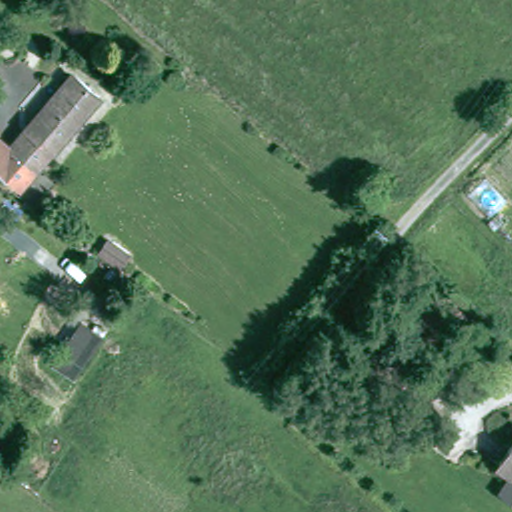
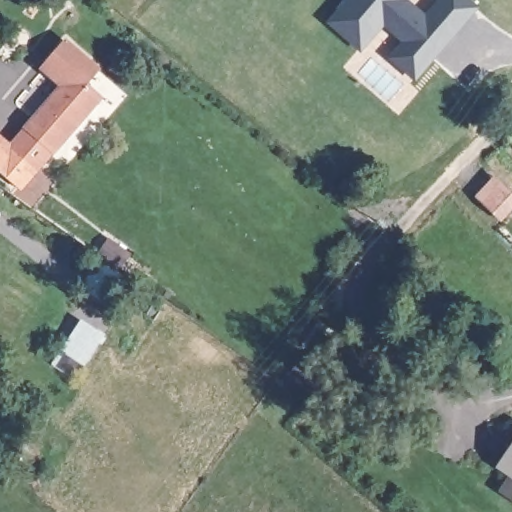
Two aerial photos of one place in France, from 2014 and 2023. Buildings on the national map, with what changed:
new [(360,46),(329,21),(347,0),(467,0),(475,6),(389,106),(343,66),(360,46)]
new [(102,69),(90,83),(76,70),(60,90),(37,72),(65,39),(102,69)]
unchanged [(22,186),(0,167),(0,161),(14,144),(76,70),(101,94),(22,186)]
unchanged [(0,161),(0,132),(14,144),(0,161)]
unchanged [(457,324),(435,353),(389,312),(412,283),(457,324)]
unchanged [(497,469),(512,447),(512,479),(497,469)]

